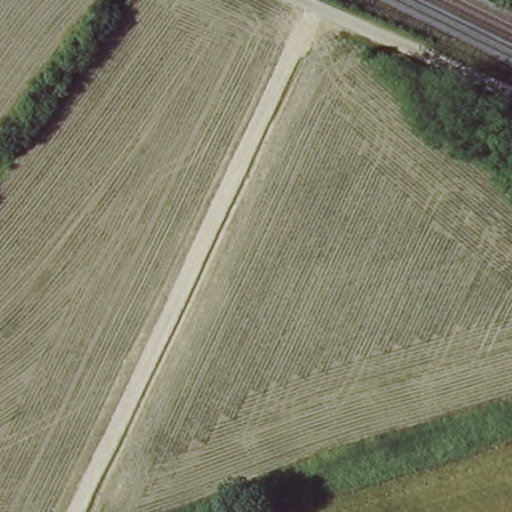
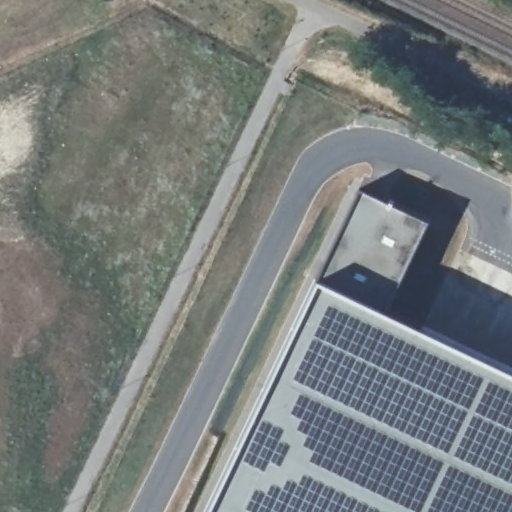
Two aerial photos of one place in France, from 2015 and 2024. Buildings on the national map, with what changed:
new [(223,512),(370,199),(436,231),(395,316),(512,371),(512,512),(223,512)]

